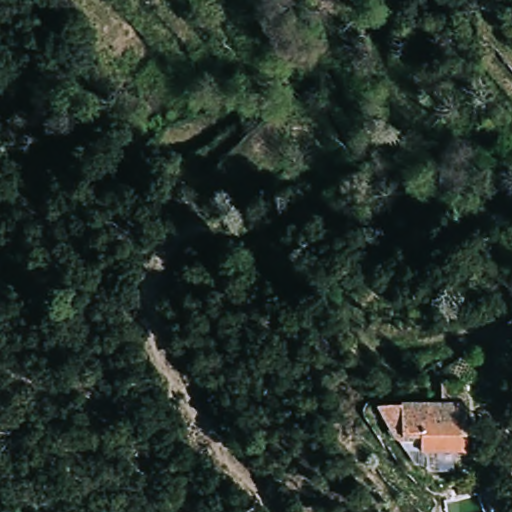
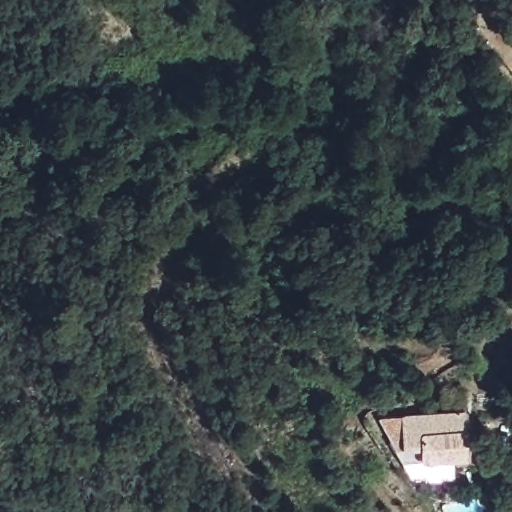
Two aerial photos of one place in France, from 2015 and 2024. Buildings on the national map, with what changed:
unchanged [(467,458),(424,460),(419,473),(412,472),(375,410),(440,407),(440,387),(465,387),(467,458)]

